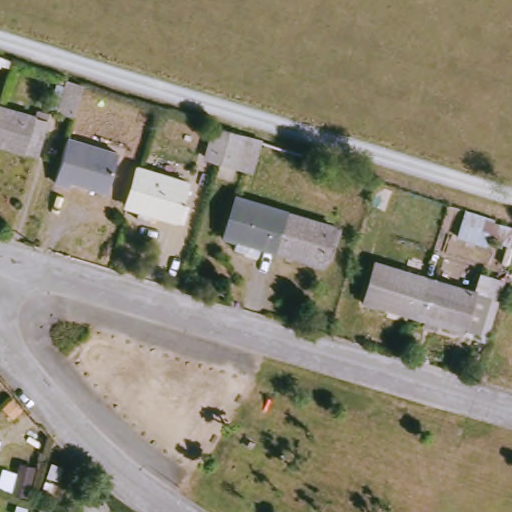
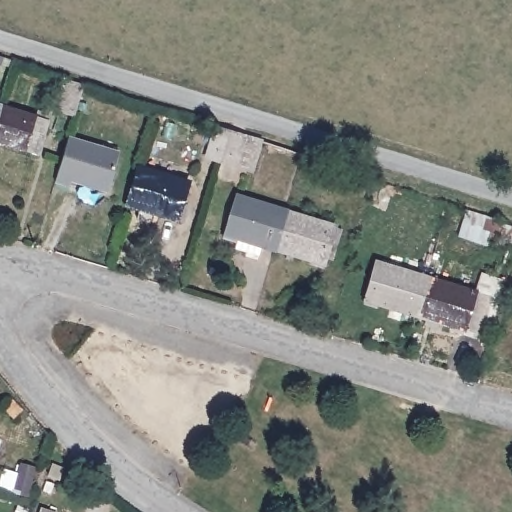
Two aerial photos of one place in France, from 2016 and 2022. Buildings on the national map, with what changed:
unchanged [(73,128),(58,122),(68,92),(83,97),(73,128)]
unchanged [(29,160),(0,152),(0,106),(41,119),(29,160)]
unchanged [(227,160),(211,155),(219,126),(236,131),(260,139),(250,168),(227,160)]
unchanged [(68,134),(120,151),(107,189),(71,177),(70,182),(55,178),(68,134)]
unchanged [(141,166),(187,181),(181,202),(188,204),(184,220),(177,218),(175,224),(161,220),(163,214),(155,211),(152,219),(139,215),(141,207),(130,204),(141,166)]
unchanged [(281,243),(245,231),(242,236),(230,232),(245,192),(293,208),(281,243)]
unchanged [(293,208),(337,222),(325,262),(315,259),(316,255),(281,243),(293,208)]
unchanged [(417,310),(406,307),(404,314),(395,311),(396,304),(382,299),(378,308),(365,304),(378,260),(428,275),(417,310)]
unchanged [(490,334),(464,325),(461,333),(450,329),(452,322),(441,318),(439,325),(427,322),(430,315),(417,310),(428,275),(501,298),(490,334)]

